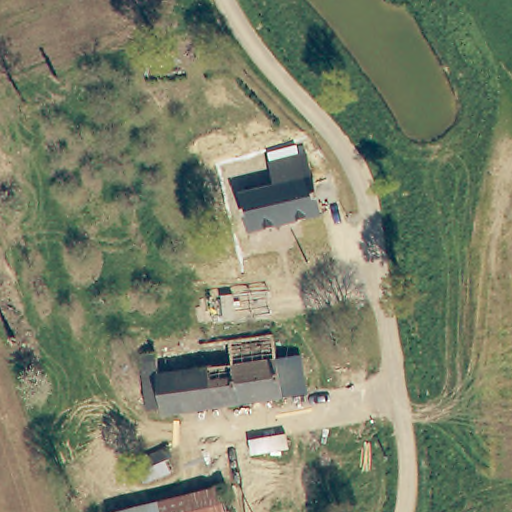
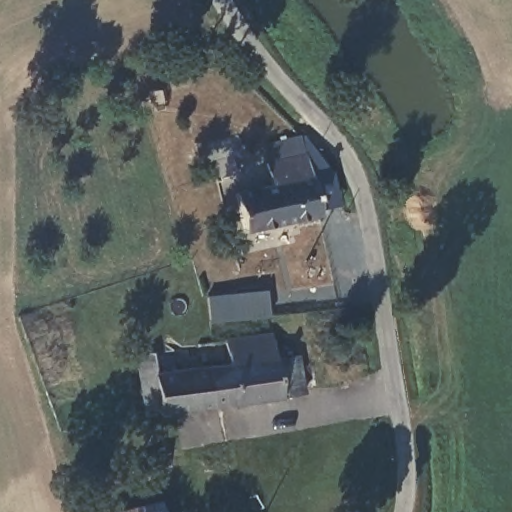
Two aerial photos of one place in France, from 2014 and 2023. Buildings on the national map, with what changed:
unchanged [(312,172),(320,211),(249,229),(239,191),(275,182),(270,161),(307,152),(312,172)]
new [(212,321),(210,296),(268,290),(271,315),(212,321)]
unchanged [(306,393),(163,413),(162,406),(147,409),(140,355),(177,347),(180,367),(206,362),(203,341),(273,330),(276,355),(300,351),(300,357),(305,387),(306,393)]
unchanged [(139,480),(130,458),(160,446),(168,468),(139,480)]
unchanged [(160,500),(164,512),(111,512),(111,511),(160,500)]

